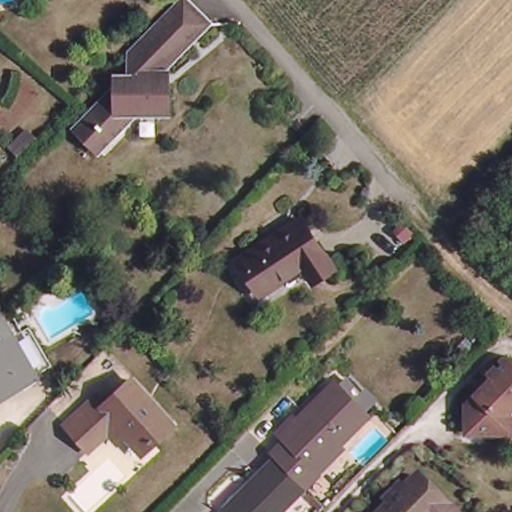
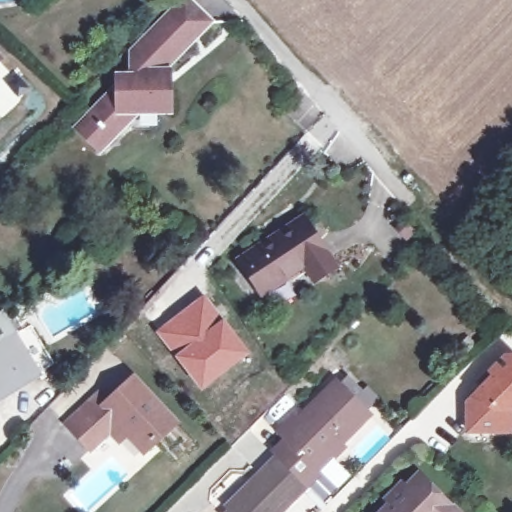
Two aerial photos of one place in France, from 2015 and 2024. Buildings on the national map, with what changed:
unchanged [(91,111),(93,109),(98,109),(98,104),(120,83),(121,71),(133,72),(133,47),(170,11),(181,0),(194,0),(213,19),(195,37),(163,68),(163,70),(175,70),(174,80),(173,109),(141,108),(121,128),(102,146),(80,123),(91,111)]
unchanged [(242,259),(302,219),(330,263),(310,276),(303,264),(262,291),(242,259)]
new [(205,293),(250,352),(201,392),(153,331),(205,293)]
unchanged [(0,324),(0,315),(3,313),(16,335),(25,330),(47,369),(32,379),(10,339),(0,324)]
unchanged [(32,379),(33,379),(15,391),(0,400),(0,324),(10,339),(32,379)]
unchanged [(483,364),(502,344),(512,353),(512,379),(506,385),(512,390),(512,394),(506,401),(506,420),(462,422),(461,395),(487,368),(483,364)]
unchanged [(506,385),(512,379),(512,390),(506,385)]
unchanged [(109,432),(89,451),(65,424),(97,394),(106,403),(131,381),(171,422),(140,449),(125,434),(117,441),(109,432)]
unchanged [(229,512),(225,508),(242,491),(276,457),(271,452),(283,440),(280,437),(275,433),(292,416),(296,420),(335,381),(369,414),(340,443),(343,447),(316,474),(279,512),(229,512)]
unchanged [(393,506),(389,501),(405,484),(410,488),(421,476),(459,512),(387,512),(393,506)]

